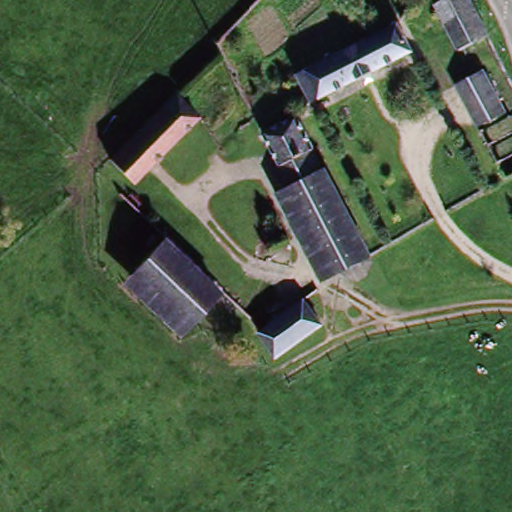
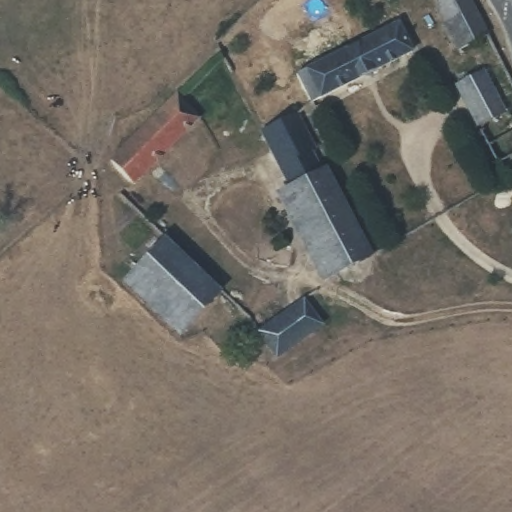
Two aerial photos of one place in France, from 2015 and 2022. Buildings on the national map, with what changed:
unchanged [(465,0),(487,38),(454,58),(430,15),(439,10),(457,0),(465,0)]
unchanged [(433,0),(457,0),(439,10),(433,0)]
unchanged [(288,75),(350,50),(394,32),(407,55),(300,102),(287,76),(288,75)]
unchanged [(470,126),(447,85),(470,72),(494,114),(470,126)]
unchanged [(196,117),(130,183),(127,180),(112,165),(142,136),(179,101),(196,117)]
unchanged [(290,154),(306,179),(314,174),(315,177),(360,260),(332,272),(252,135),(282,118),(285,122),(292,138),(297,150),(290,154)]
unchanged [(203,307),(172,337),(170,336),(115,278),(113,277),(155,236),(215,297),(203,307)]
unchanged [(297,297),(300,300),(317,318),(288,342),(287,342),(272,354),(257,332),(297,297)]

